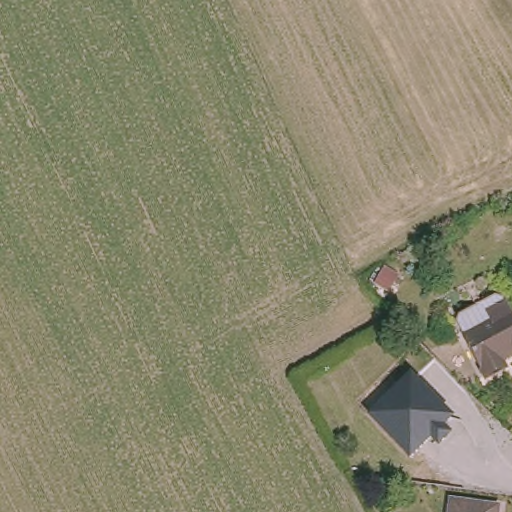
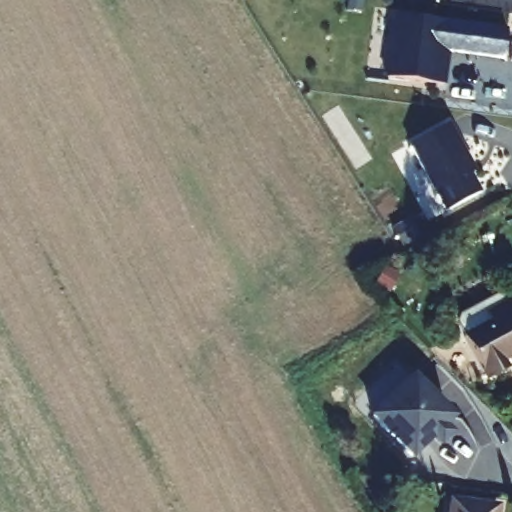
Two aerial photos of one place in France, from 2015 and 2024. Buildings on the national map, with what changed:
new [(507,30),(504,59),(445,51),(445,57),(440,57),(439,64),(443,65),(446,68),(444,85),(387,78),(395,15),(507,30)]
new [(410,144),(449,123),(470,160),(465,163),(481,192),(447,211),(410,144)]
new [(470,160),(475,171),(470,174),(465,163),(470,160)]
unchanged [(504,365),(484,377),(462,338),(490,322),(486,314),(505,303),(512,315),(512,356),(502,362),(504,365)]
unchanged [(360,417),(404,370),(454,416),(443,427),(450,433),(434,451),(427,444),(409,462),(360,417)]
unchanged [(497,508),(497,512),(448,512),(450,502),(497,508)]

